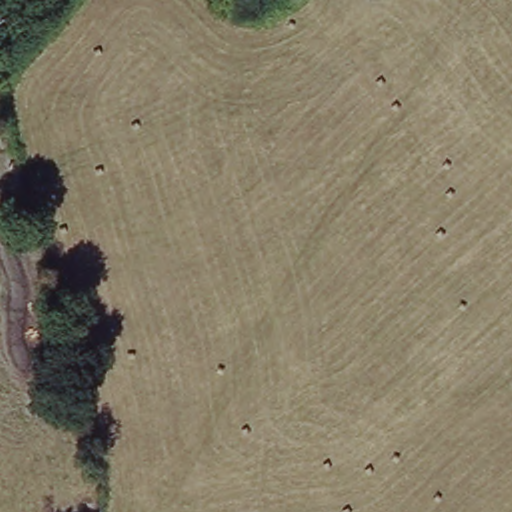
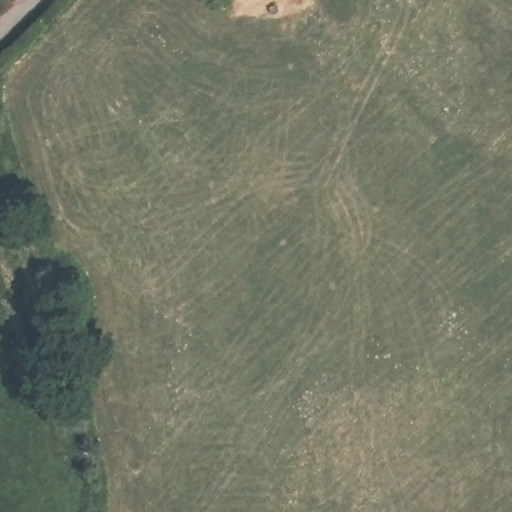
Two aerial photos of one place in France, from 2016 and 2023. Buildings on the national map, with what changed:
[]

